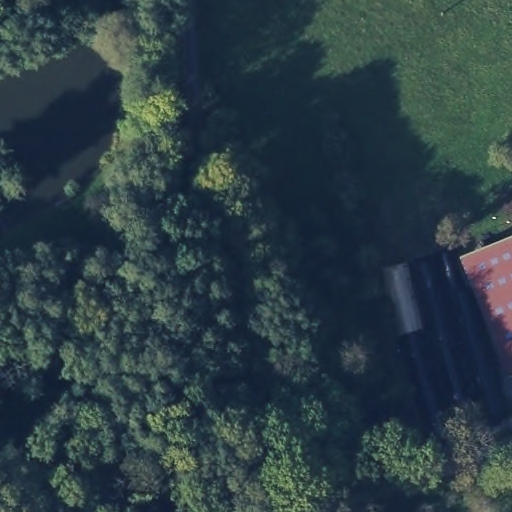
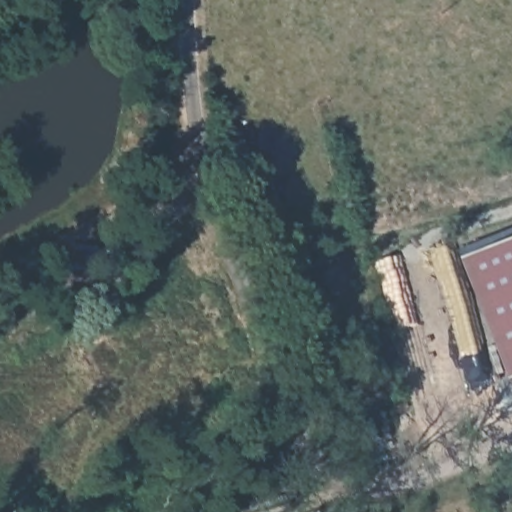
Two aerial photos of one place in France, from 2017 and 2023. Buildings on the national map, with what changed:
unchanged [(460,257),(512,237),(512,378),(507,380),(460,257)]

